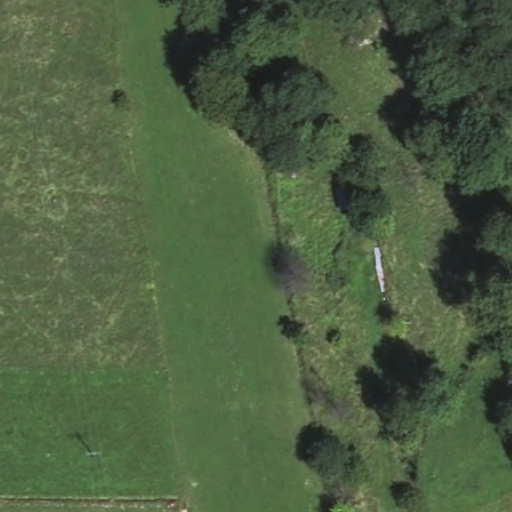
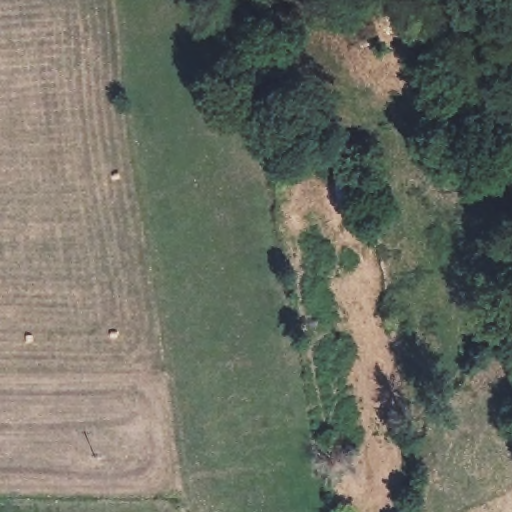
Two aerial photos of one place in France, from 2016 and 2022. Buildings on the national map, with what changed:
unchanged [(375,224),(353,229),(347,205),(335,209),(331,185),(364,176),(375,224)]

